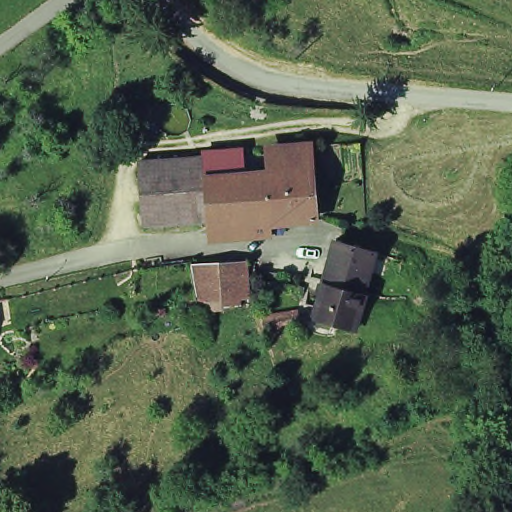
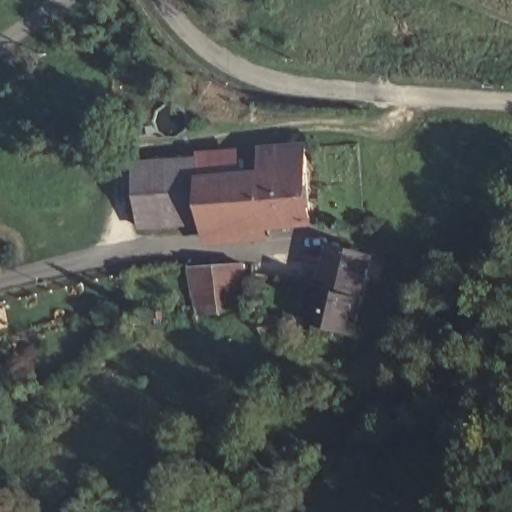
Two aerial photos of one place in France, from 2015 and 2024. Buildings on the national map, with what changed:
unchanged [(279,162),(278,146),(313,143),(315,219),(273,221),(270,162),(279,162)]
unchanged [(247,170),(250,222),(230,224),(211,225),(210,219),(173,222),(150,224),(145,160),(205,154),(206,167),(207,174),(226,172),(247,170)]
unchanged [(250,222),(247,170),(266,168),(265,163),(270,162),(273,221),(250,222)]
unchanged [(359,292),(320,281),(333,239),(372,251),(398,259),(390,284),(364,276),(359,292)]
unchanged [(230,311),(195,315),(189,262),(228,257),(230,311)]
unchanged [(350,329),(309,317),(320,281),(359,292),(361,293),(350,329)]

